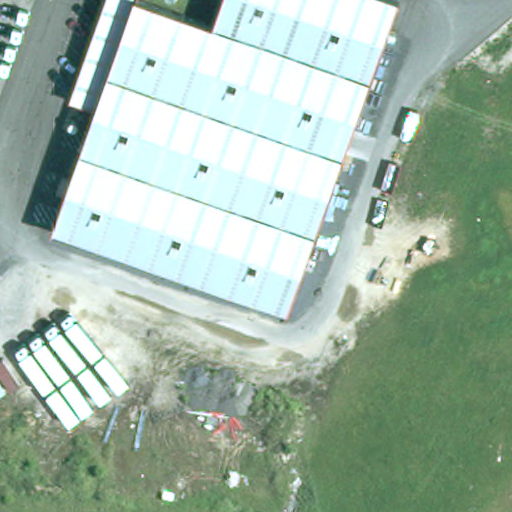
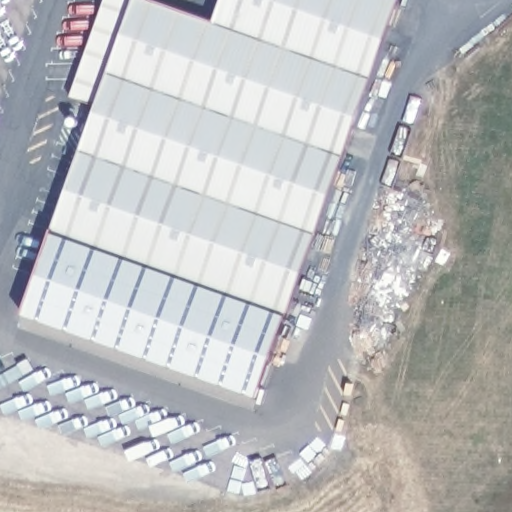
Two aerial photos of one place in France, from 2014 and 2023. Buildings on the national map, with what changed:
unchanged [(57,226),(103,99),(78,90),(111,0),(174,0),(221,17),(227,0),(403,0),(293,309),(57,226)]
new [(290,308),(258,396),(24,313),(55,225),(57,226),(290,308)]

